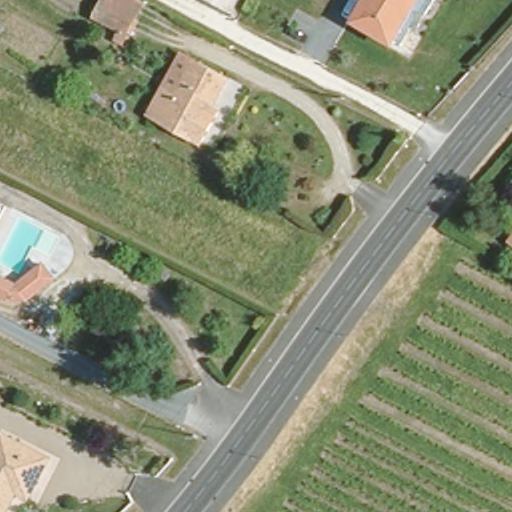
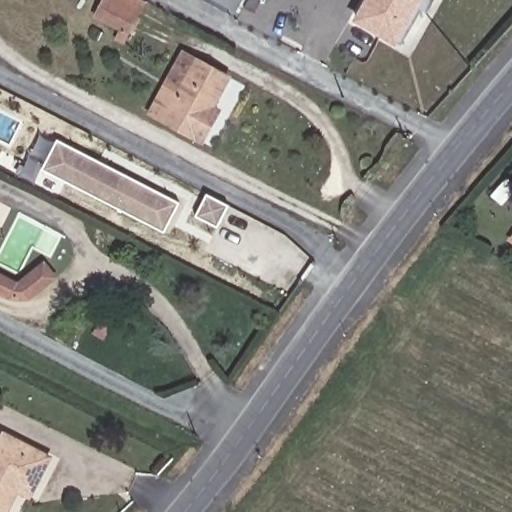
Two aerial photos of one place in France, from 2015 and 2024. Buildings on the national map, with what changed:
unchanged [(121,20),(96,7),(99,0),(138,0),(135,6),(124,29),(118,26),(121,20)]
unchanged [(351,12),(358,0),(410,0),(391,34),(385,30),(351,12)]
unchanged [(411,0),(426,0),(422,6),(411,0)]
unchanged [(199,140),(145,112),(159,86),(173,94),(191,59),(222,76),(207,104),(215,109),(199,140)]
new [(164,234),(41,170),(56,140),(179,204),(164,234)]
new [(208,194),(230,205),(219,228),(196,217),(208,194)]
unchanged [(508,232),(512,226),(512,236),(508,232)]
new [(45,264),(56,277),(30,299),(13,298),(0,292),(0,276),(19,285),(45,264)]
unchanged [(2,512),(0,512),(0,436),(2,432),(46,454),(31,485),(27,493),(15,487),(2,512)]

